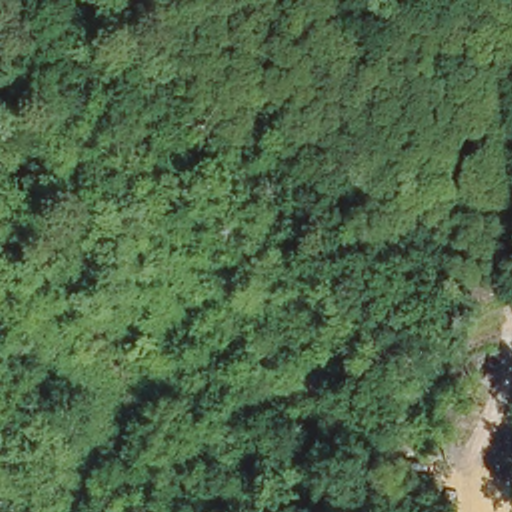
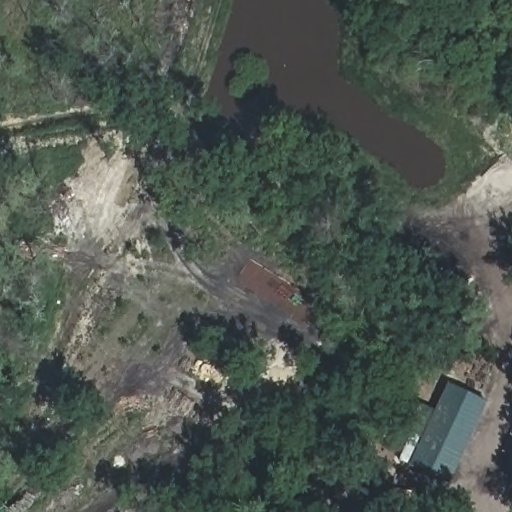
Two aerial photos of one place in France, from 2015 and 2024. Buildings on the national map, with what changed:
new [(446,485),(407,464),(446,385),(485,402),(446,485)]

